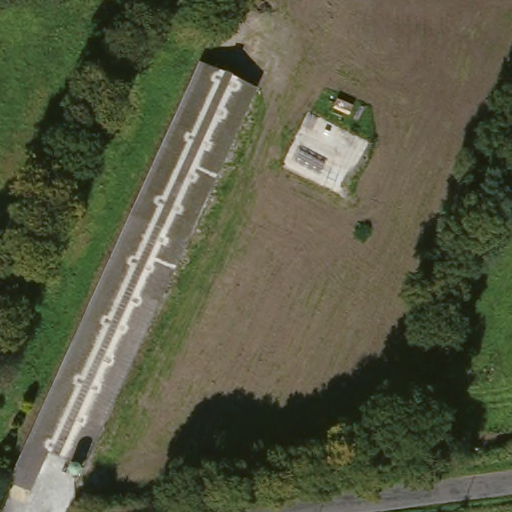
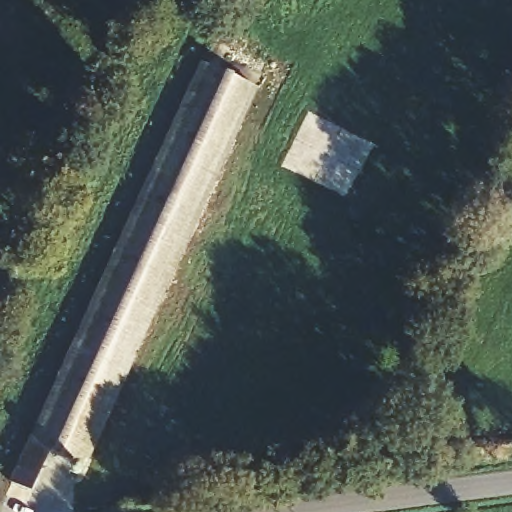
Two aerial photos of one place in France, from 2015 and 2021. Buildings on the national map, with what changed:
unchanged [(256,90),(189,236),(80,469),(45,454),(31,482),(7,471),(112,245),(196,63),(256,90)]

